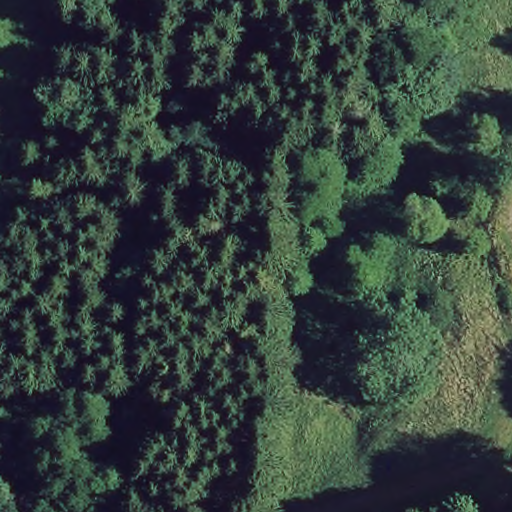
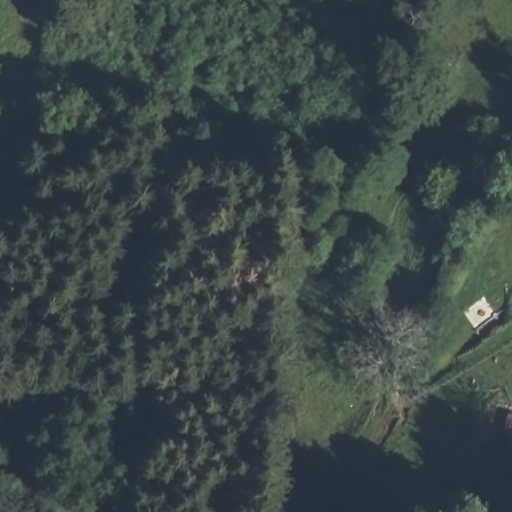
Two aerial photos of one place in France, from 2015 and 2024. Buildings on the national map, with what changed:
[]

